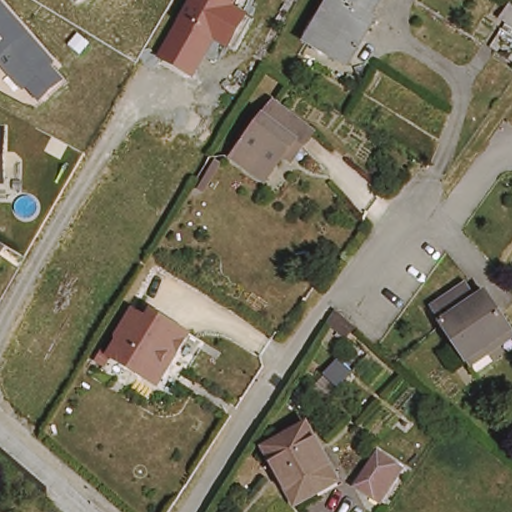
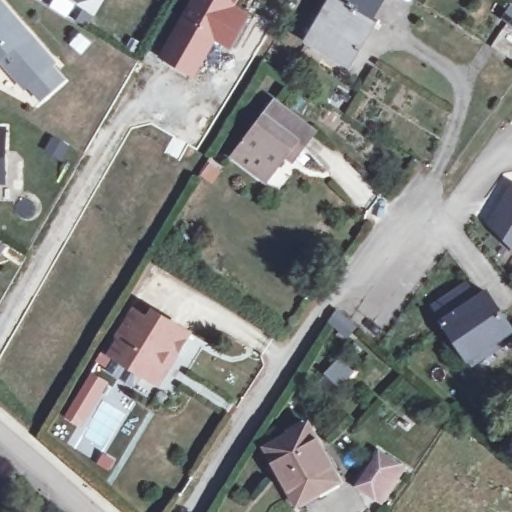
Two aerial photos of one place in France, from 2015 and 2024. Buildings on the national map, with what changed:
unchanged [(27,83),(22,87),(0,56),(0,0),(4,0),(52,65),(65,81),(41,101),(27,83)]
unchanged [(71,0),(91,0),(80,5),(71,0)]
unchanged [(191,71),(162,51),(196,0),(238,0),(232,10),(233,11),(252,23),(235,51),(227,45),(215,37),(214,37),(191,71)]
unchanged [(308,33),(332,0),(346,0),(372,19),(377,22),(350,60),(308,33)]
unchanged [(346,0),(385,0),(372,19),(346,0)]
unchanged [(502,4),(512,11),(512,30),(493,17),(502,4)]
unchanged [(287,155),(266,179),(238,151),(285,101),(320,136),(307,150),(296,162),(287,155)]
unchanged [(8,136),(5,186),(0,186),(0,135),(8,136)]
new [(512,182),(512,249),(480,221),(507,179),(512,182)]
unchanged [(477,296),(488,288),(512,326),(512,332),(470,360),(435,303),(469,283),(477,296)]
unchanged [(335,305),(355,323),(347,334),(325,316),(335,305)]
unchanged [(172,352),(166,362),(160,357),(148,374),(117,352),(128,336),(125,333),(142,307),(157,317),(162,310),(196,333),(180,357),(172,352)]
unchanged [(306,427),(335,485),(292,506),(263,448),(306,427)]
unchanged [(375,497),(358,485),(382,451),(405,467),(395,482),(382,502),(375,497)]

